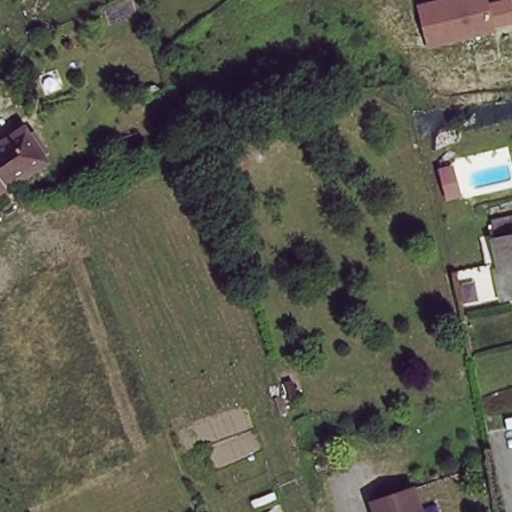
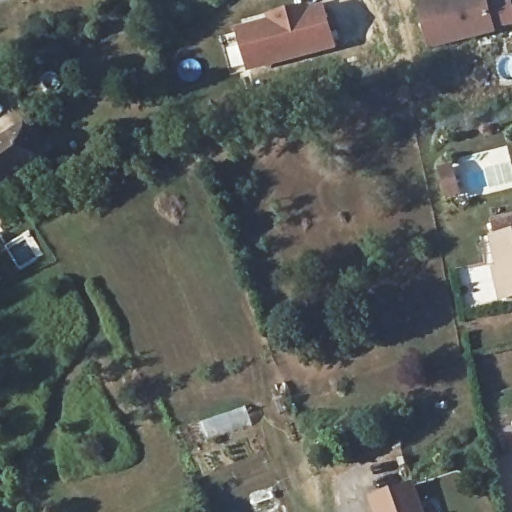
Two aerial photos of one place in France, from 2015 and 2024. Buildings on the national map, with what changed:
unchanged [(426,48),(415,6),(437,0),(485,0),(493,31),(426,48)]
new [(325,6),(335,49),(246,71),(236,29),(268,20),(266,16),(310,5),(311,9),(325,6)]
unchanged [(39,156),(0,181),(0,134),(18,124),(39,156)]
unchanged [(502,297),(489,240),(512,235),(512,295),(502,297)]
unchanged [(415,512),(369,512),(366,504),(406,489),(415,512)]

